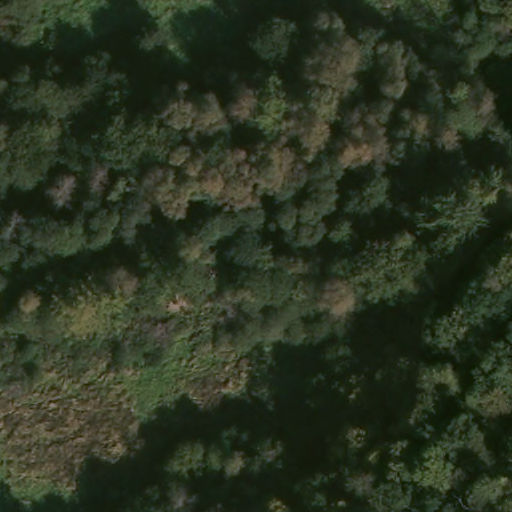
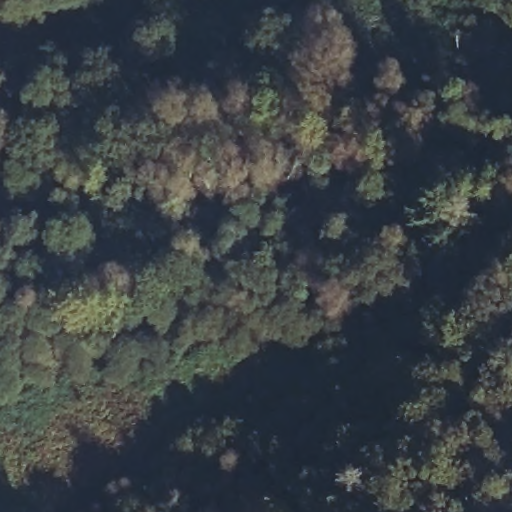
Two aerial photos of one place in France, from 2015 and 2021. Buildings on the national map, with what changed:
[]

